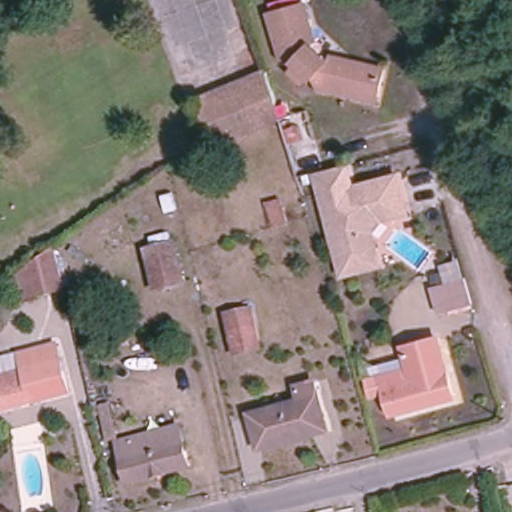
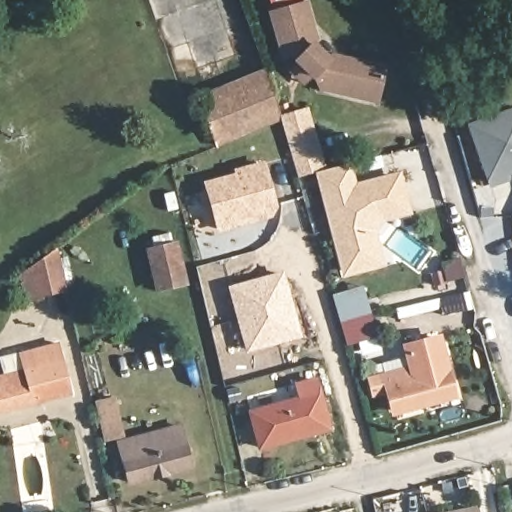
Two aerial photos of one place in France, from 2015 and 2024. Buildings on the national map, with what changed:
unchanged [(304,5),(317,53),(324,58),(381,71),(376,99),(326,88),(293,60),(283,62),(269,18),(268,14),(289,9),(304,5)]
unchanged [(273,70),(285,114),(287,116),(280,119),(236,136),(224,140),(208,94),(273,70)]
new [(287,116),(285,114),(308,106),(325,169),(296,178),(280,119),(287,116)]
new [(512,107),(512,170),(506,172),(509,181),(489,187),(486,179),(467,123),(512,107)]
new [(274,211),(275,217),(216,234),(202,182),(233,174),(230,169),(264,160),(278,210),(274,211)]
unchanged [(383,224),(376,234),(383,267),(342,280),(313,175),(348,163),(356,182),(398,170),(409,214),(383,224)]
demolished [(280,196),(293,191),(300,214),(288,218),(280,196)]
unchanged [(177,247),(187,284),(161,290),(151,253),(177,247)]
unchanged [(56,249),(67,290),(39,297),(27,300),(21,274),(31,267),(56,249)]
demolished [(472,305),(441,315),(433,288),(438,286),(434,273),(444,270),(449,281),(465,279),(472,305)]
new [(284,271),(303,338),(246,353),(227,286),(284,271)]
new [(343,345),(338,325),(332,302),(329,296),(359,287),(361,295),(368,317),(373,336),(343,345)]
demolished [(251,310),(263,350),(240,356),(229,316),(251,310)]
unchanged [(444,335),(461,394),(405,409),(399,390),(384,395),(380,377),(384,376),(380,365),(416,354),(413,344),(444,335)]
unchanged [(0,380),(8,378),(3,358),(25,353),(62,346),(66,365),(73,394),(0,412),(0,380)]
unchanged [(319,431),(268,446),(258,411),(304,397),(300,380),(318,375),(328,410),(333,426),(319,431)]
unchanged [(103,415),(100,408),(112,405),(120,439),(109,442),(103,415)]
unchanged [(181,426),(187,447),(192,467),(129,485),(117,444),(153,434),(181,426)]
new [(476,505),(477,512),(439,512),(476,505)]

